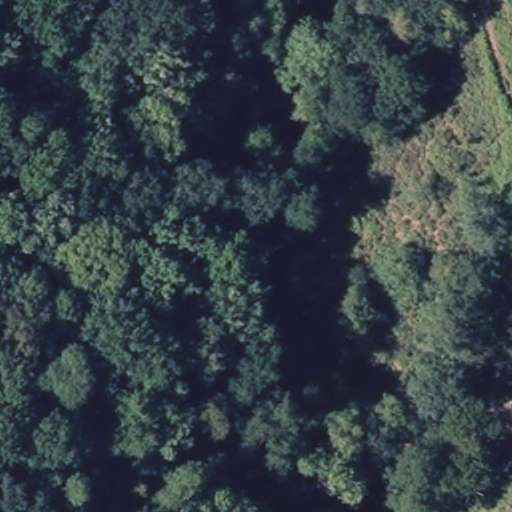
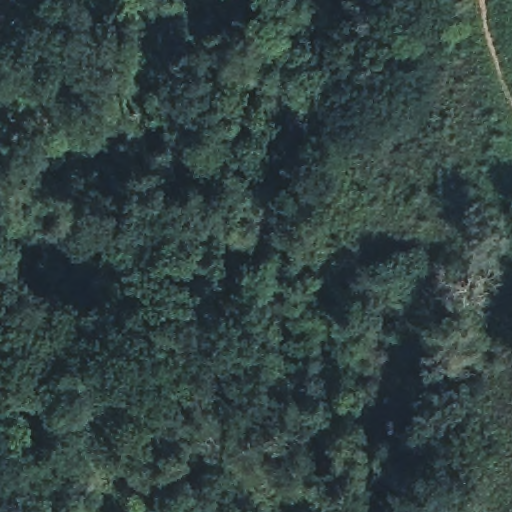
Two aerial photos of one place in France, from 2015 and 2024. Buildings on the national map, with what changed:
[]

